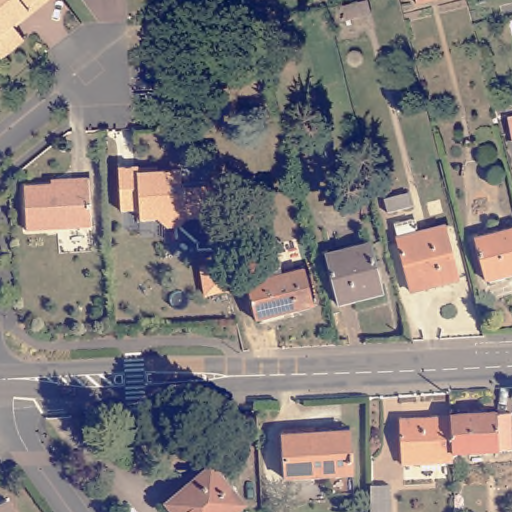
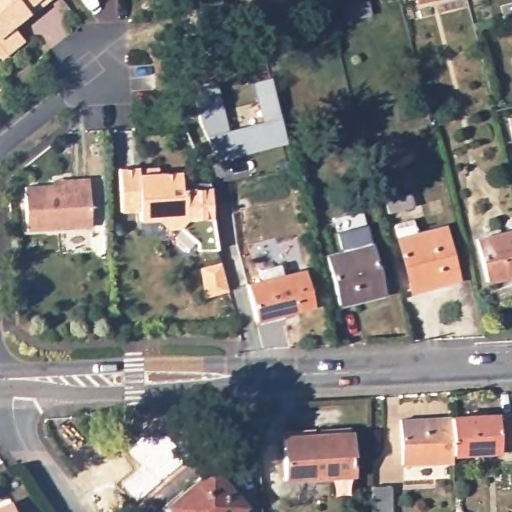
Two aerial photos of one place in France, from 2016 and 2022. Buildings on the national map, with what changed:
unchanged [(23,44),(0,62),(0,61),(0,0),(40,0),(42,4),(12,29),(23,44)]
unchanged [(344,19),(342,5),(361,0),(368,0),(371,12),(344,19)]
unchanged [(414,0),(421,0),(414,1),(414,0)]
new [(199,123),(193,88),(218,84),(229,129),(261,121),(253,81),(271,77),(286,144),(216,160),(205,136),(199,123)]
unchanged [(512,135),(506,115),(512,113),(512,135)]
unchanged [(184,185),(188,185),(190,212),(181,224),(169,225),(159,216),(141,217),(140,207),(122,209),(120,165),(140,164),(160,162),(161,169),(182,167),(184,185)]
unchanged [(94,228),(29,233),(26,189),(53,187),(53,182),(73,180),(91,179),(94,228)]
unchanged [(410,193),(413,207),(387,214),(384,200),(410,193)]
unchanged [(418,220),(422,236),(449,228),(462,281),(417,293),(399,224),(418,220)]
unchanged [(479,243),(512,235),(512,280),(489,286),(479,243)]
unchanged [(368,245),(383,294),(339,305),(326,255),(368,245)]
unchanged [(209,297),(206,279),(205,269),(223,264),(224,267),(225,272),(231,291),(209,297)]
unchanged [(268,270),(289,265),(291,275),(314,270),(323,308),(265,323),(255,283),(270,279),(268,270)]
unchanged [(510,415),(512,451),(452,454),(450,418),(510,415)]
unchanged [(401,466),(399,421),(450,418),(452,454),(453,463),(401,466)]
unchanged [(352,433),(354,477),(289,481),(285,438),(352,433)]
unchanged [(212,467),(246,507),(240,512),(172,512),(166,505),(212,467)]
unchanged [(387,485),(388,512),(368,512),(368,485),(387,485)]
unchanged [(14,505),(17,512),(0,512),(0,511),(14,505)]

